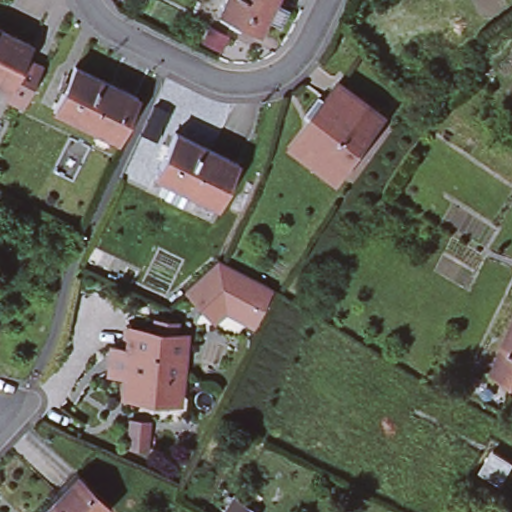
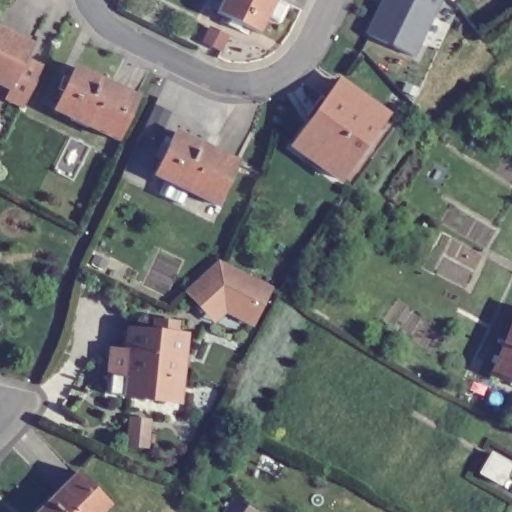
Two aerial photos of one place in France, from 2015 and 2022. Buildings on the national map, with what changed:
unchanged [(265,21),(256,38),(214,18),(222,0),(275,0),(272,5),(284,11),(276,26),(265,21)]
new [(382,0),(442,0),(414,60),(367,35),(382,0)]
unchanged [(19,100),(4,93),(9,84),(5,82),(0,80),(0,28),(25,40),(20,52),(37,61),(19,100)]
unchanged [(137,96),(116,139),(55,110),(75,66),(137,96)]
unchanged [(317,110),(320,112),(328,101),(325,99),(339,81),(385,115),(347,166),(337,178),(292,144),(302,131),(317,110)]
unchanged [(170,198),(177,185),(155,174),(175,132),(235,161),(215,203),(201,196),(195,210),(170,198)]
unchanged [(269,283),(261,300),(257,308),(223,291),(204,309),(185,289),(211,265),(219,258),(269,283)]
unchanged [(512,316),(512,383),(488,372),(512,316)]
unchanged [(153,335),(154,323),(177,325),(175,336),(185,337),(179,404),(123,398),(125,379),(109,377),(110,373),(115,368),(115,364),(111,358),(111,353),(127,355),(130,332),(153,335)]
unchanged [(505,467),(495,484),(477,473),(487,456),(505,467)]
unchanged [(110,503),(101,512),(34,512),(77,469),(110,503)]

